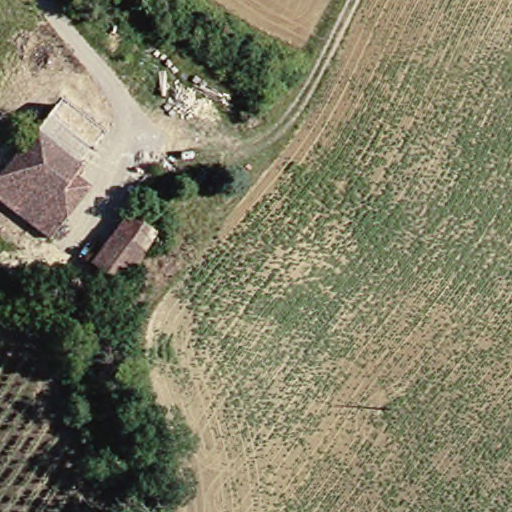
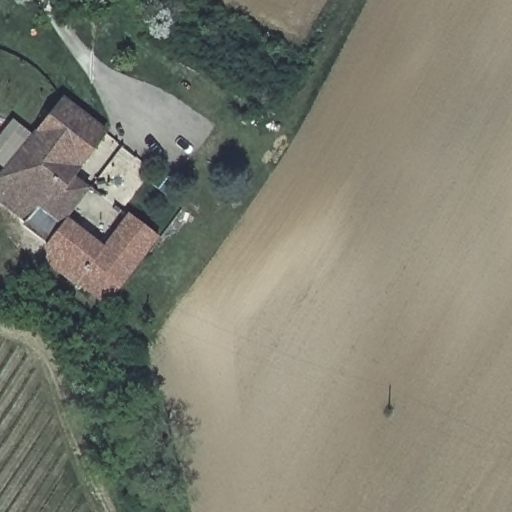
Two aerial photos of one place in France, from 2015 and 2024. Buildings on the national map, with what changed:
unchanged [(35,128),(64,93),(109,127),(80,165),(35,128)]
unchanged [(49,241),(0,206),(0,169),(35,128),(80,165),(70,182),(85,190),(53,232),(49,241)]
unchanged [(88,268),(110,233),(122,212),(152,232),(140,250),(117,287),(88,268)]
new [(45,246),(49,241),(53,232),(65,216),(102,245),(88,268),(117,287),(120,290),(105,306),(75,286),(47,266),(45,246)]

